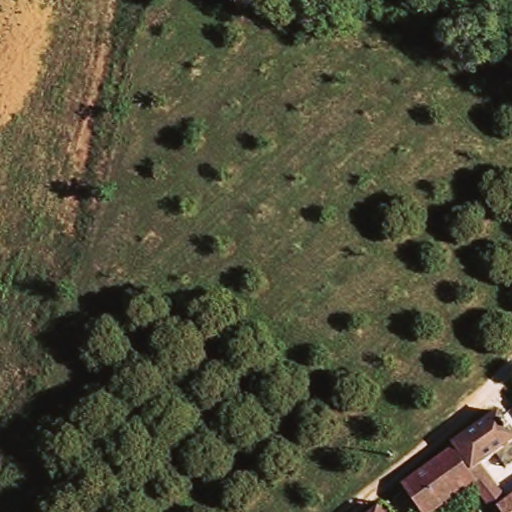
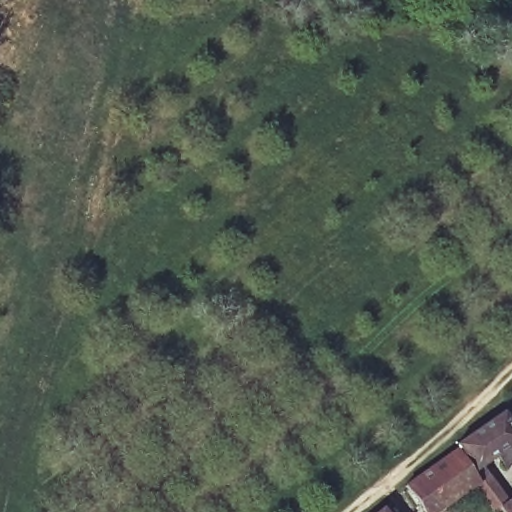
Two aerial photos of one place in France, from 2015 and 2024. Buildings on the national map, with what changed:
unchanged [(512,434),(512,447),(492,462),(485,454),(475,464),(504,493),(512,488),(512,512),(507,512),(498,502),(493,507),(472,479),(464,467),(468,464),(452,442),(495,411),(512,434)]
unchanged [(424,512),(420,512),(398,481),(448,445),(464,467),(472,479),(424,512)]
unchanged [(385,501),(393,512),(370,512),(385,501)]

